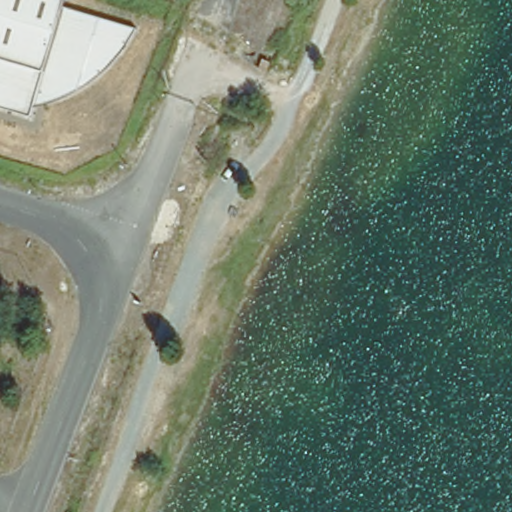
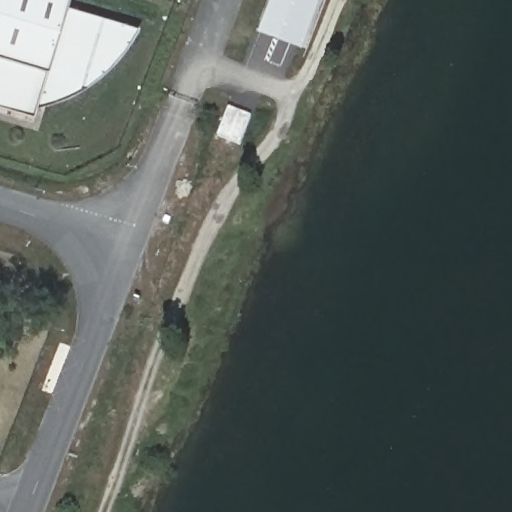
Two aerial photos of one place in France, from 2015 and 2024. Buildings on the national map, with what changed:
unchanged [(43,100),(36,102),(29,103),(22,104),(19,111),(0,105),(0,0),(56,0),(55,4),(130,28),(127,34),(124,40),(120,46),(116,52),(112,58),(108,63),(103,68),(98,73),(92,77),(87,81),(81,85),(75,89),(69,91),(63,94),(59,95),(56,97),(49,99),(43,100)]
new [(265,0),(314,0),(297,45),(272,36),(253,29),(265,0)]

